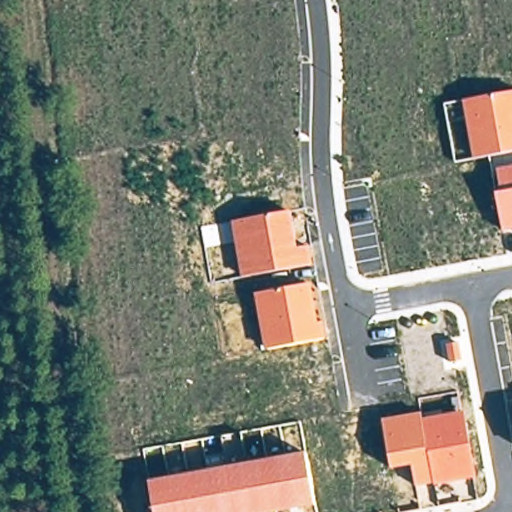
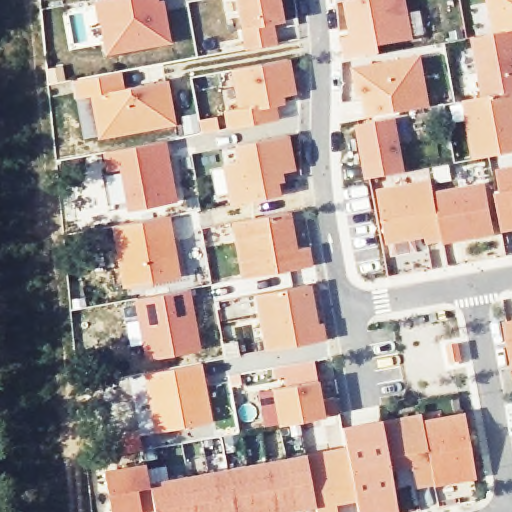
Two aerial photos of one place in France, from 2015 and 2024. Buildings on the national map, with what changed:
new [(160,3),(166,41),(106,52),(100,18),(98,19),(95,1),(97,0),(154,0),(155,4),(160,3)]
new [(270,22),(275,44),(246,49),(237,0),(277,0),(281,21),(270,22)]
new [(375,44),(377,51),(347,56),(345,40),(353,39),(347,0),(403,0),(410,37),(375,44)]
new [(489,0),(512,0),(512,31),(495,34),(489,0)]
unchanged [(465,101),(485,97),(473,38),(495,34),(512,31),(512,153),(476,160),(465,101)]
new [(374,118),(370,94),(364,95),(360,70),(424,58),(433,107),(374,118)]
new [(292,92),(280,95),(281,102),(272,104),(275,120),(229,129),(225,111),(240,108),(233,69),(286,60),(292,92)]
new [(97,140),(97,136),(85,137),(73,81),(120,72),(123,89),(167,81),(175,125),(97,140)]
new [(363,128),(398,122),(407,173),(373,180),(363,128)]
new [(292,168),(278,171),(280,179),(275,180),(277,196),(232,205),(225,167),(240,165),(236,145),(286,136),(292,168)]
new [(176,202),(127,212),(118,170),(105,172),(102,153),(165,141),(176,202)]
unchanged [(500,192),(496,172),(512,169),(512,230),(501,232),(495,194),(500,192)]
new [(434,195),(441,239),(426,241),(425,235),(386,242),(377,193),(431,183),(434,195)]
new [(441,239),(434,195),(483,186),(491,233),(442,242),(441,239)]
unchanged [(233,222),(280,214),(287,212),(288,222),(293,250),(306,247),(310,267),(244,278),(233,222)]
new [(180,278),(123,288),(111,227),(169,216),(180,278)]
unchanged [(317,323),(322,322),(325,340),(270,350),(260,293),(310,284),(317,323)]
new [(201,345),(148,357),(136,296),(190,287),(201,345)]
new [(429,316),(434,317),(436,321),(435,324),(431,326),(428,325),(426,322),(426,318),(427,318),(429,316)]
new [(418,318),(421,318),(424,322),(423,326),(420,328),(416,327),(414,324),(415,321),(418,318)]
new [(405,321),(409,321),(411,323),(411,327),(410,330),(404,330),(402,327),(402,322),(403,322),(405,321)]
new [(512,324),(512,356),(506,325),(512,324)]
new [(459,342),(462,363),(447,366),(444,345),(459,342)]
new [(212,423),(138,433),(136,417),(146,416),(142,398),(132,400),(127,376),(200,362),(212,423)]
new [(278,425),(271,388),(317,380),(320,400),(333,397),(336,415),(278,425)]
unchanged [(420,414),(422,422),(433,483),(415,487),(411,465),(390,469),(381,422),(420,414)]
unchanged [(461,415),(473,477),(433,483),(422,422),(461,415)]
new [(140,449),(122,452),(120,435),(138,433),(140,449)]
new [(355,497),(335,501),(337,512),(316,512),(315,505),(306,457),(345,450),(355,497)]
unchanged [(306,457),(315,505),(275,512),(266,462),(306,456),(306,457)]
unchanged [(266,462),(275,512),(235,512),(227,470),(266,462)]
new [(105,471),(145,463),(148,484),(154,512),(112,512),(105,471)]
unchanged [(235,512),(194,512),(188,477),(227,470),(235,512)]
unchanged [(194,512),(154,512),(148,484),(188,477),(194,512)]

